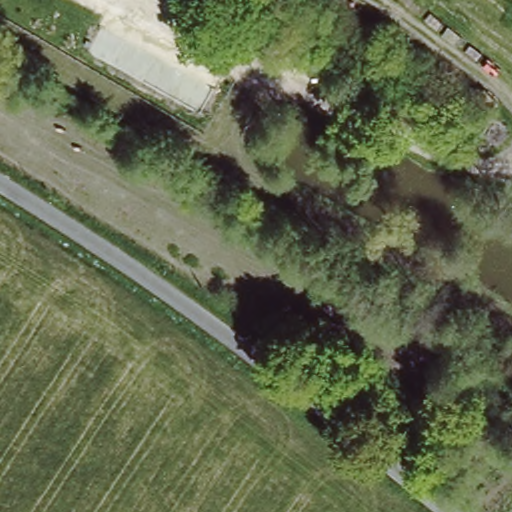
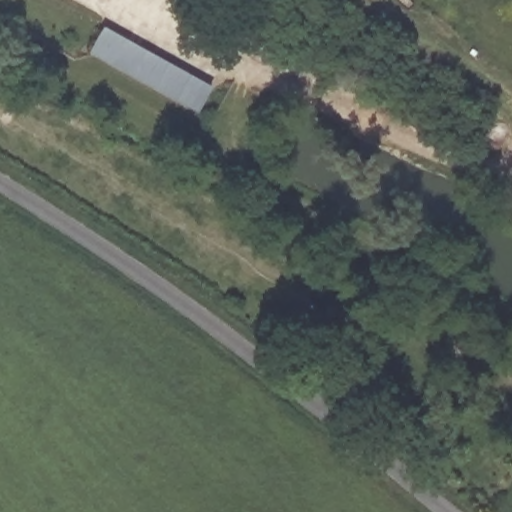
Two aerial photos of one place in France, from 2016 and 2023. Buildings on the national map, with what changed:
new [(104,27),(214,87),(201,114),(89,53),(104,27)]

